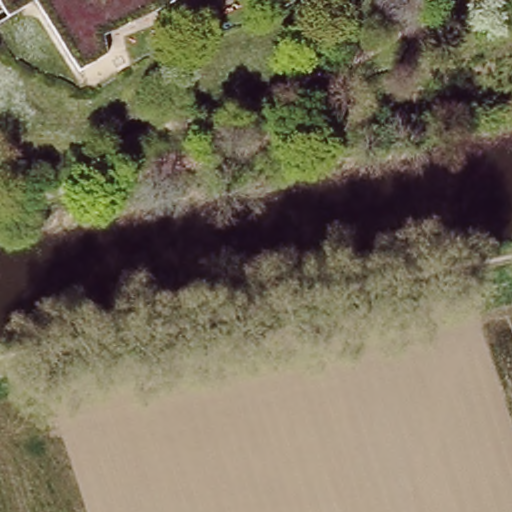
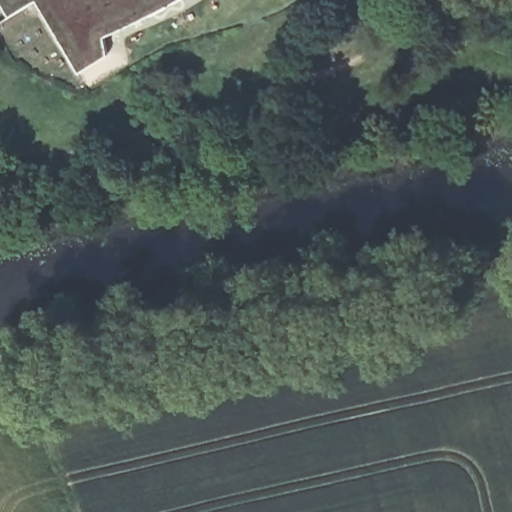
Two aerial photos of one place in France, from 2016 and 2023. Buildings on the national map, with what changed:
unchanged [(100,55),(73,67),(31,1),(2,15),(0,13),(0,0),(170,0),(144,14),(100,32),(100,55)]

